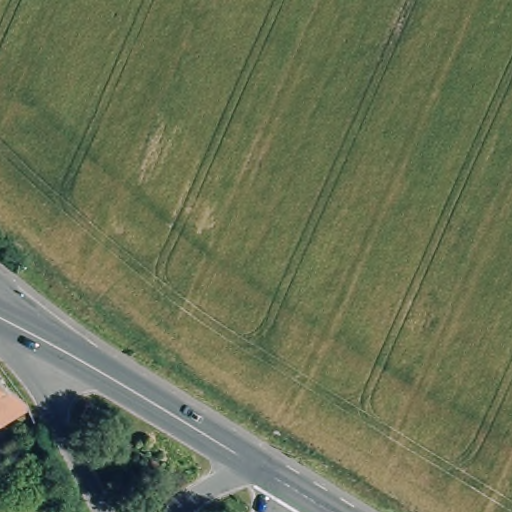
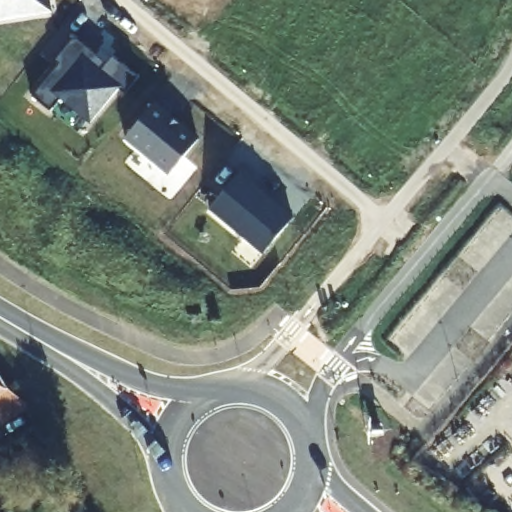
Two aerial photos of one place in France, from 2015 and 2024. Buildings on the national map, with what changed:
new [(0,0),(50,0),(52,13),(0,21),(0,0)]
new [(60,98),(50,109),(33,95),(60,63),(57,59),(75,36),(107,63),(113,57),(137,75),(125,91),(119,87),(90,123),(60,98)]
new [(168,173),(125,138),(155,101),(199,137),(168,173)]
new [(210,209),(242,171),(295,215),(263,253),(210,209)]
unchanged [(23,396),(25,401),(27,406),(13,415),(9,410),(0,415),(0,371),(23,396)]

